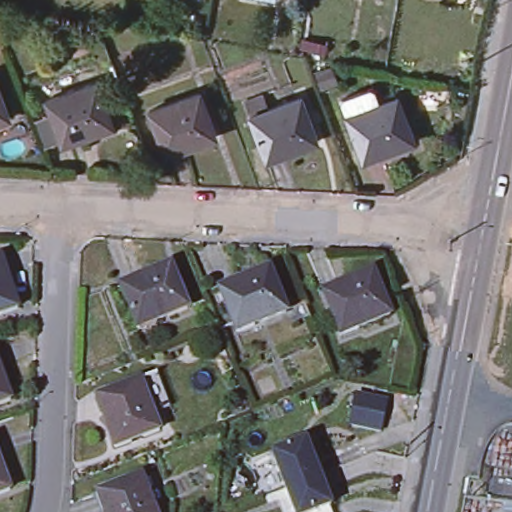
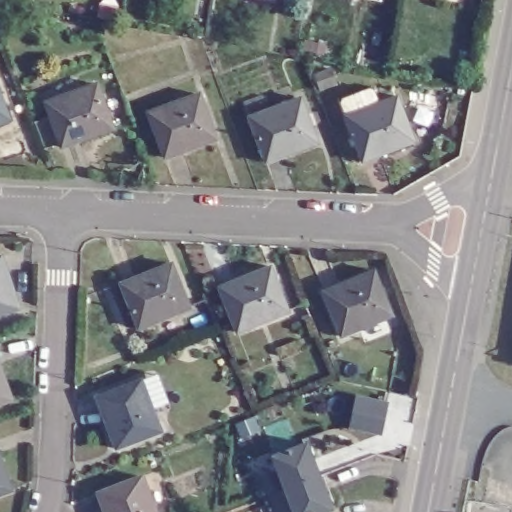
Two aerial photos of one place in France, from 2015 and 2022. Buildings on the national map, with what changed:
unchanged [(97,84),(114,129),(64,147),(47,103),(97,84)]
unchanged [(418,144),(367,163),(350,118),(345,102),(376,91),(382,106),(401,99),(418,144)]
unchanged [(200,92),(215,136),(164,155),(147,111),(200,92)]
unchanged [(317,141),(266,160),(250,114),(245,100),(263,94),(268,108),(301,96),(317,141)]
unchanged [(0,133),(0,100),(11,129),(0,133)]
unchanged [(15,302),(0,307),(0,264),(15,302)]
unchanged [(170,265),(187,308),(138,326),(122,284),(170,265)]
unchanged [(270,266),(287,309),(237,329),(220,286),(270,266)]
unchanged [(375,272),(392,316),(342,337),(323,293),(375,272)]
unchanged [(10,399),(0,403),(0,370),(10,399)]
unchanged [(151,375),(162,404),(147,410),(155,433),(112,450),(92,399),(135,382),(151,375)]
unchanged [(307,445),(320,478),(287,490),(273,457),(307,445)]
unchanged [(10,483),(0,487),(0,455),(10,483)]
unchanged [(138,475),(152,512),(100,512),(92,492),(138,475)]
unchanged [(320,478),(332,508),(323,512),(296,512),(287,490),(320,478)]

